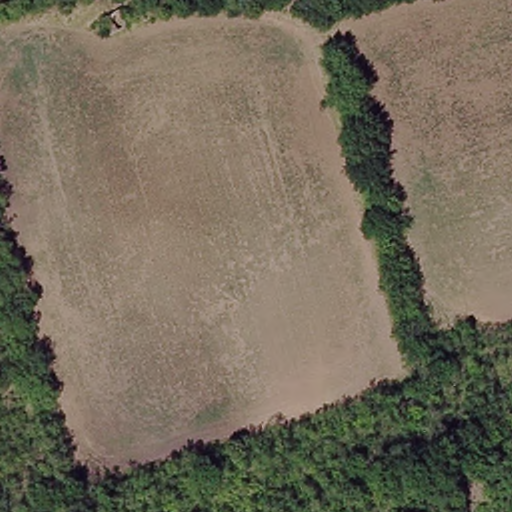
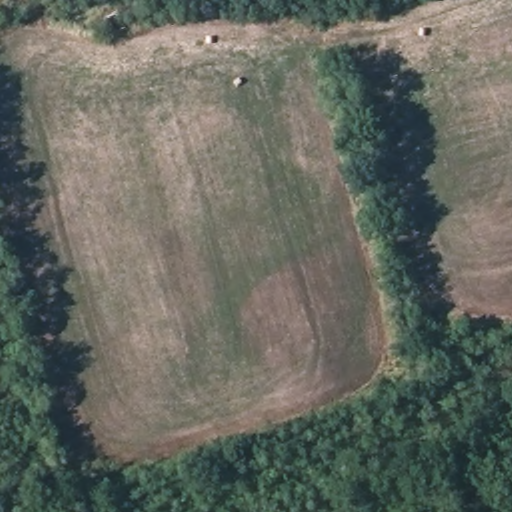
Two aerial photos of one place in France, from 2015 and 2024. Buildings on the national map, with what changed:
unchanged [(126,30),(110,33),(107,13),(123,10),(126,30)]

